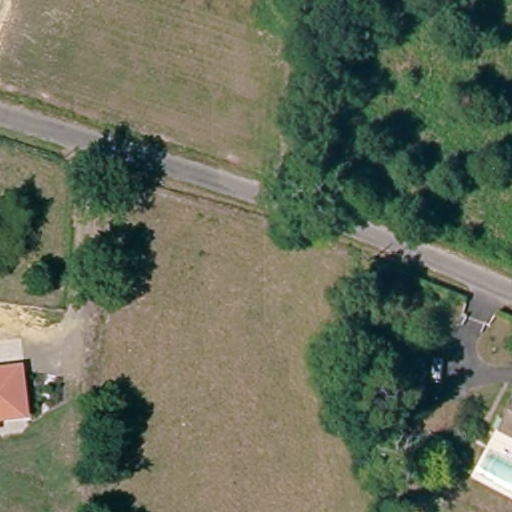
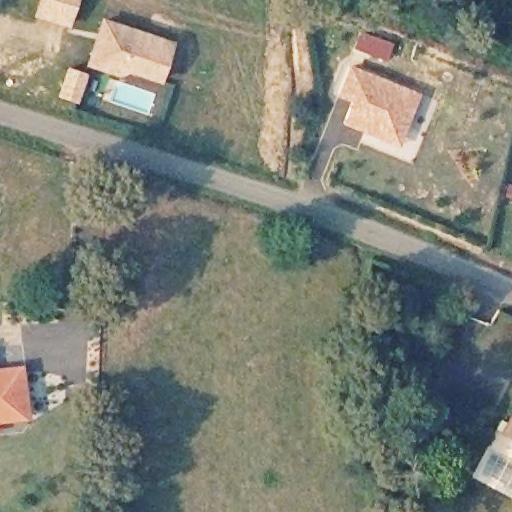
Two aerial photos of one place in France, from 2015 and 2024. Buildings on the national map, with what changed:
new [(33,17),(38,0),(77,0),(69,28),(33,17)]
new [(174,42),(159,83),(127,72),(118,78),(84,65),(101,17),(174,42)]
new [(343,123),(350,102),(338,97),(349,66),(421,94),(401,146),(343,123)]
unchanged [(28,419),(0,423),(0,368),(22,366),(28,419)]
unchanged [(511,434),(512,432),(512,435),(511,434)]

